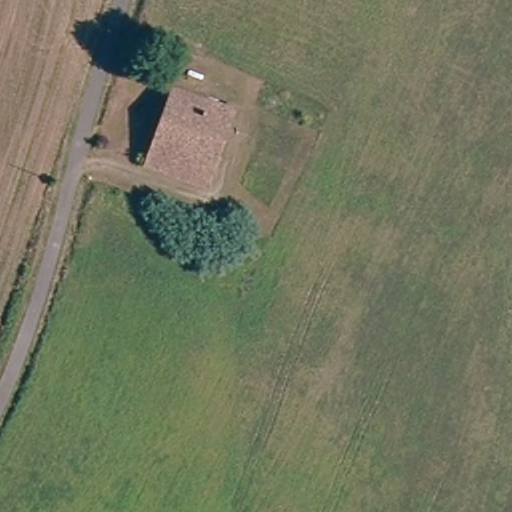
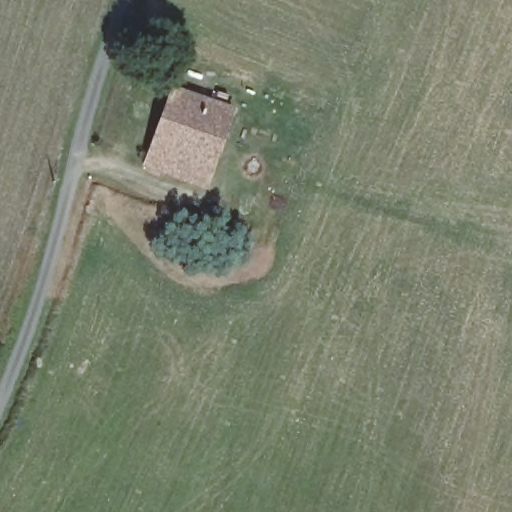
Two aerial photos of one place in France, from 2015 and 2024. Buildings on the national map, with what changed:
unchanged [(203,186),(143,164),(172,87),(233,108),(224,132),(215,152),(203,186)]

